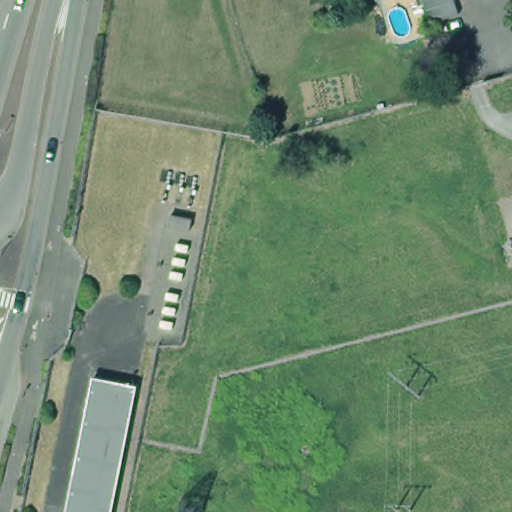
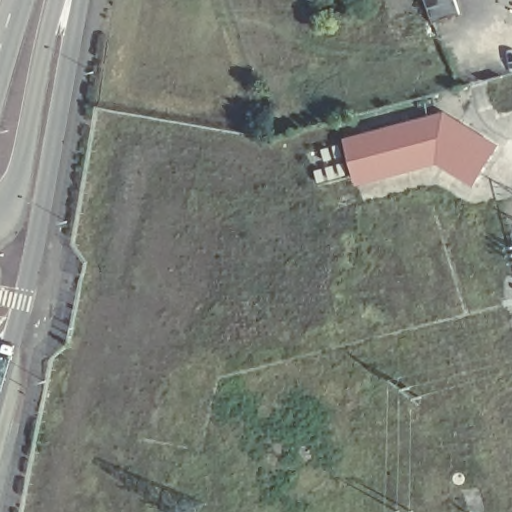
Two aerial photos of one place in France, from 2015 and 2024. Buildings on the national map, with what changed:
unchanged [(460,14),(432,23),(425,0),(455,0),(460,14)]
demolished [(487,4),(460,14),(456,0),(486,0),(487,4)]
new [(501,144),(474,188),(437,165),(359,186),(345,138),(445,110),(501,144)]
demolished [(144,380),(120,500),(117,512),(73,512),(101,372),(144,380)]

